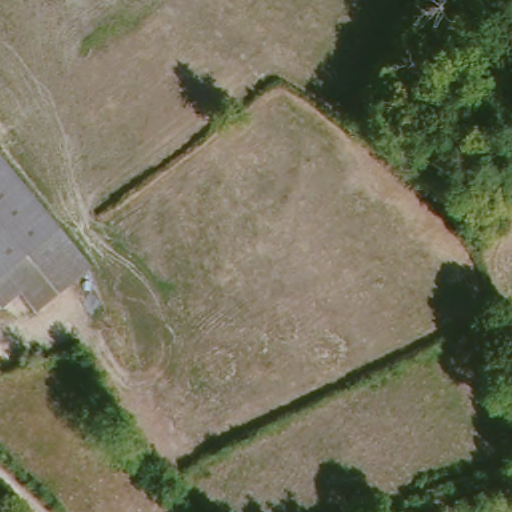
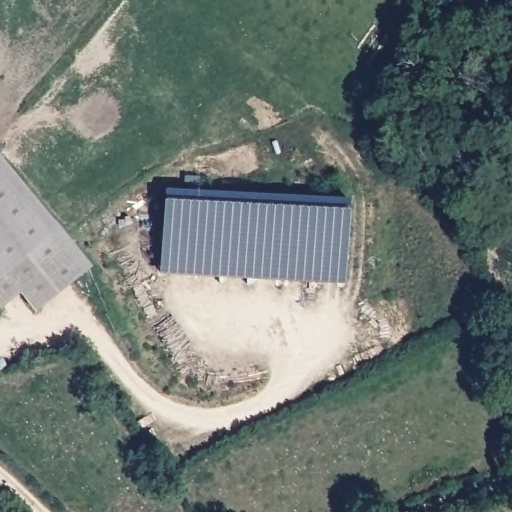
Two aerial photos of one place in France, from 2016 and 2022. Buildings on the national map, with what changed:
unchanged [(22,180),(25,178),(55,217),(64,230),(97,273),(63,300),(46,312),(31,292),(11,309),(0,295),(0,153),(22,180)]
new [(171,204),(352,204),(353,286),(171,287),(171,204)]

